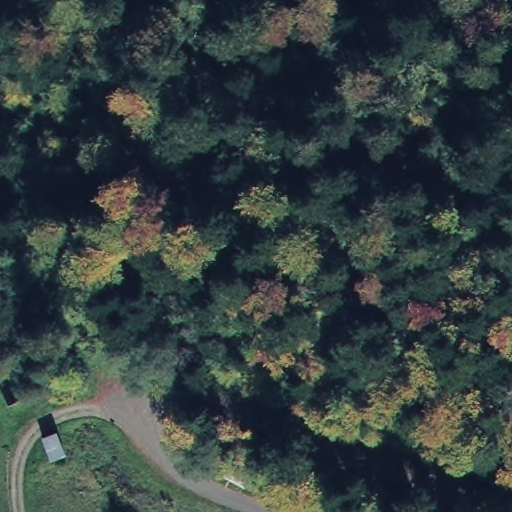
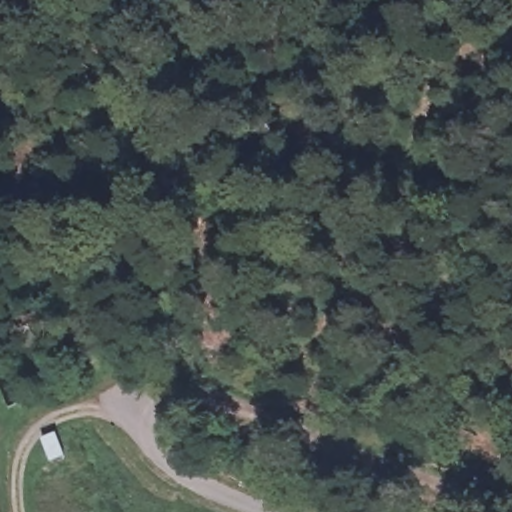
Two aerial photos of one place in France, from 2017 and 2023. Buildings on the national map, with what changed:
unchanged [(0,387),(0,379),(22,367),(34,391),(9,405),(0,387)]

